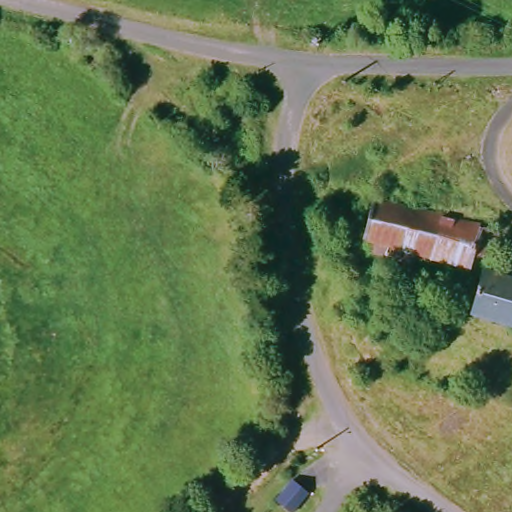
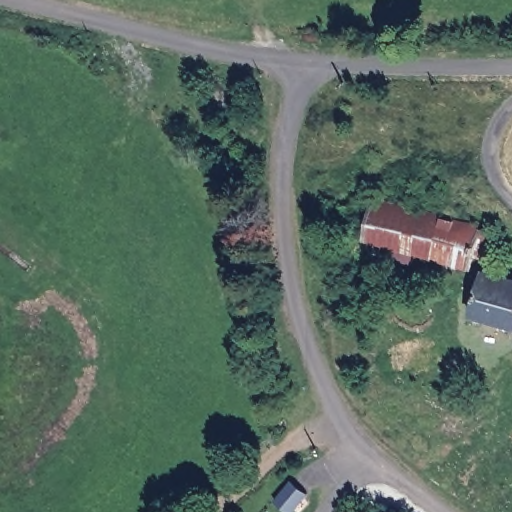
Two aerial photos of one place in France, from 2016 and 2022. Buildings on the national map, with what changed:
unchanged [(470,257),(466,270),(412,255),(409,266),(370,255),(371,243),(360,240),(371,199),(477,230),(500,236),(494,263),(470,257)]
unchanged [(479,271),(491,274),(512,280),(512,326),(468,314),(479,271)]
unchanged [(292,512),(277,499),(295,480),(309,495),(292,512)]

